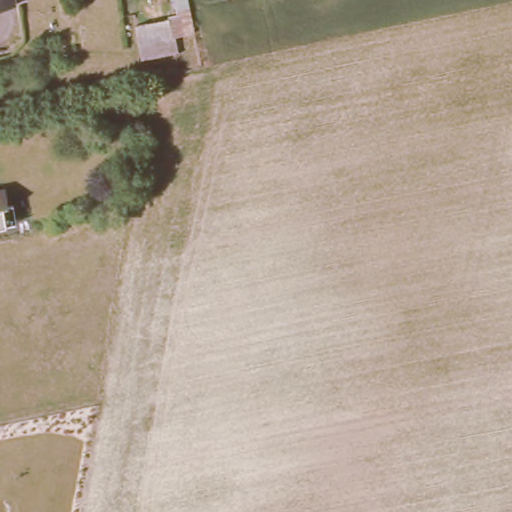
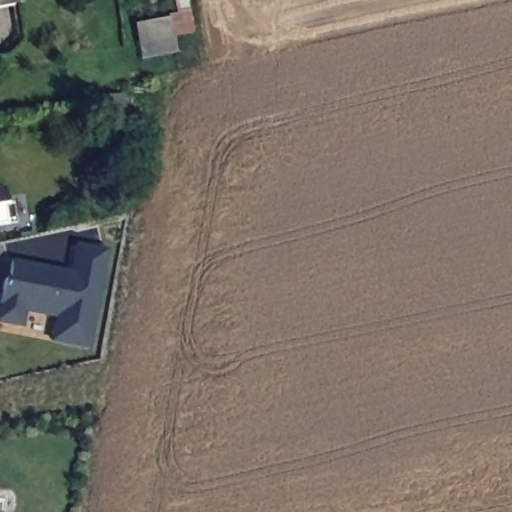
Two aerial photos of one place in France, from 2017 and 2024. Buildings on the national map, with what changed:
unchanged [(0,7),(0,0),(16,0),(17,4),(0,7)]
unchanged [(177,16),(174,0),(187,0),(195,44),(138,61),(132,29),(177,16)]
new [(8,206),(13,204),(17,225),(0,227),(0,190),(5,190),(8,206)]
new [(0,328),(0,305),(3,287),(7,287),(11,268),(72,279),(77,252),(107,257),(89,352),(52,346),(57,322),(25,317),(22,332),(0,328)]

